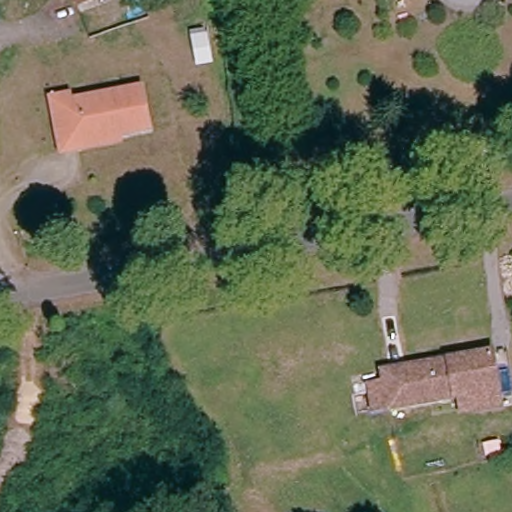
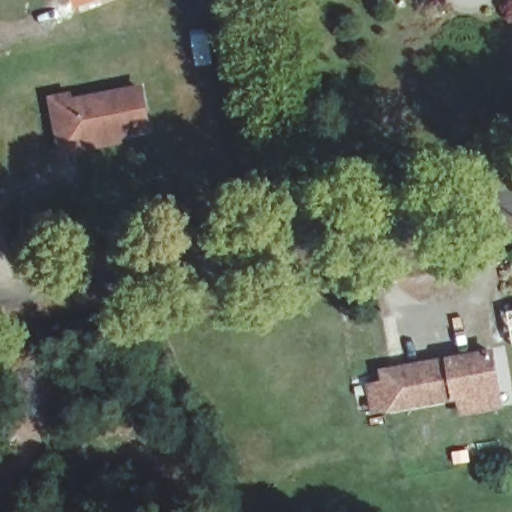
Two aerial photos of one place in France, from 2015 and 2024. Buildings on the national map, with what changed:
unchanged [(74,4),(72,0),(86,0),(74,4)]
unchanged [(79,156),(62,159),(54,121),(50,103),(67,100),(69,110),(142,95),(150,134),(117,140),(118,149),(79,156)]
unchanged [(460,417),(459,400),(369,410),(366,384),(382,382),(381,369),(491,356),(495,395),(498,414),(460,417)]

